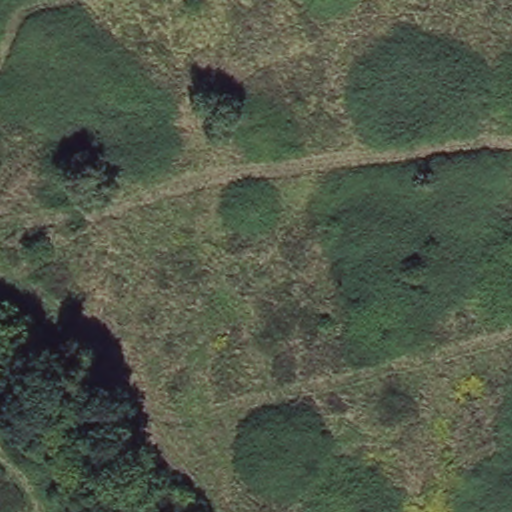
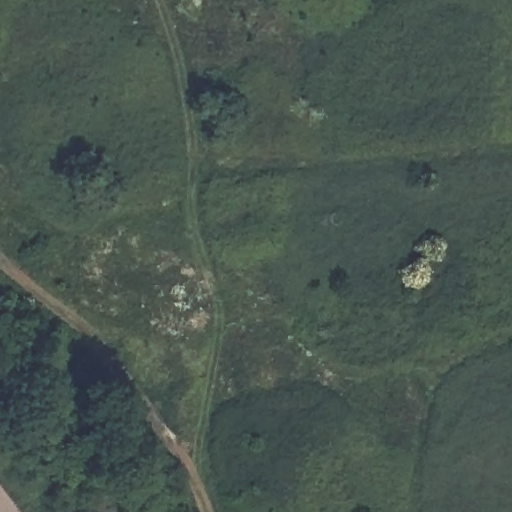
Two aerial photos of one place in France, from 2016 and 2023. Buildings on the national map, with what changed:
unchanged [(445,250),(445,254),(445,257),(447,277),(417,280),(416,251),(445,250)]

